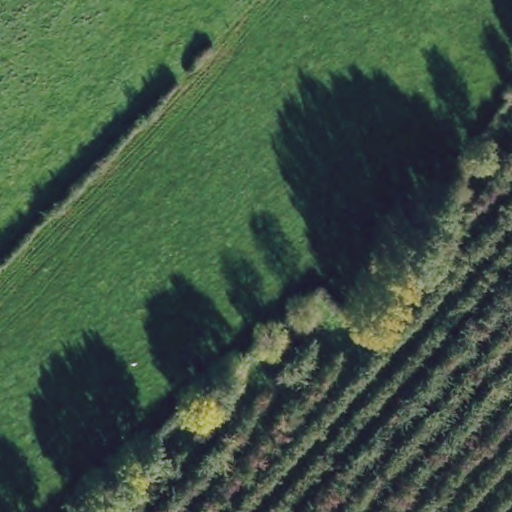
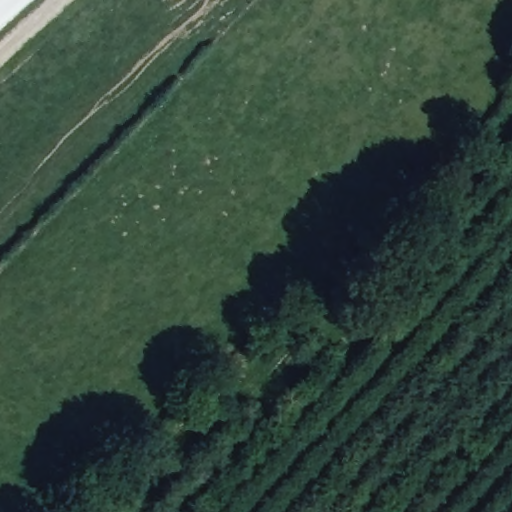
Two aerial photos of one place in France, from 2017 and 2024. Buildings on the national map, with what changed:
new [(0,32),(0,0),(37,0),(0,32)]

